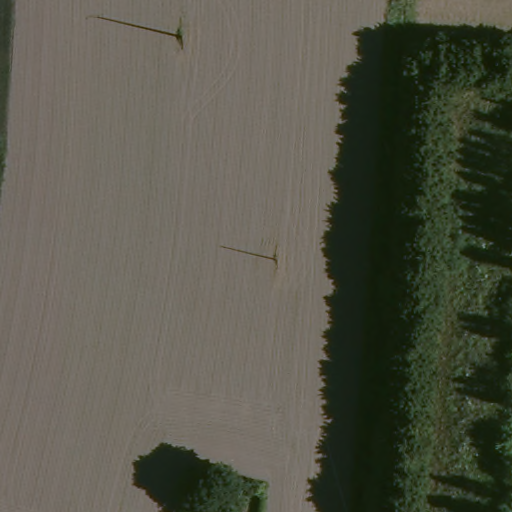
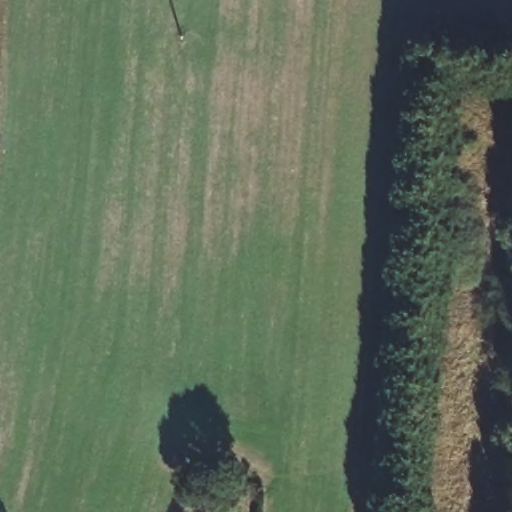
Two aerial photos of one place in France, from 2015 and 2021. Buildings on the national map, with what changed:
[]

